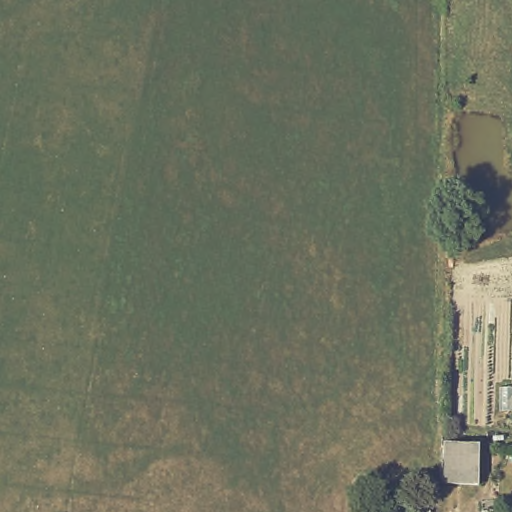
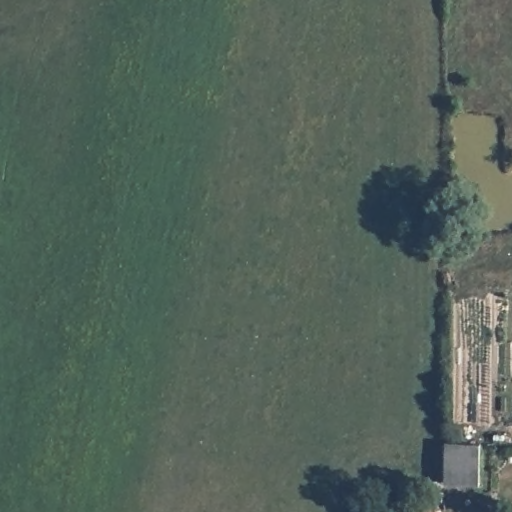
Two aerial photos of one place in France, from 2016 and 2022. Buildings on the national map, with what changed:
unchanged [(447,486),(445,470),(443,446),(475,442),(478,467),(480,483),(447,486)]

